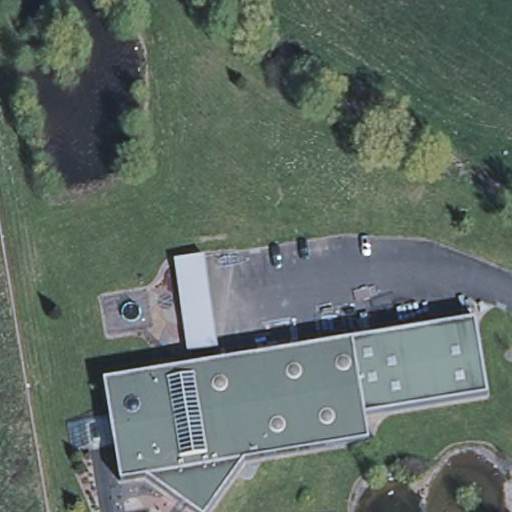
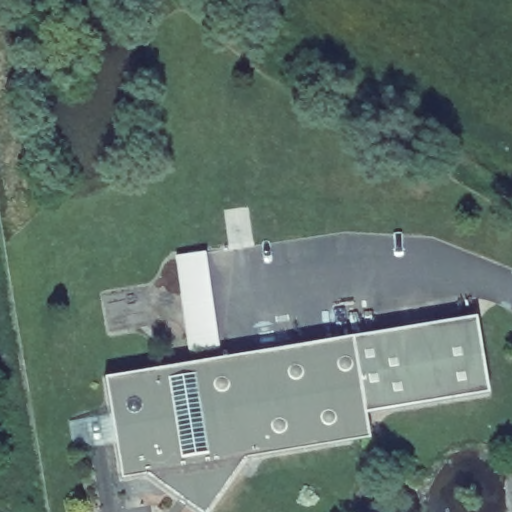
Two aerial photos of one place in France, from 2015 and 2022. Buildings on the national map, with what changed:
unchanged [(202,254),(216,347),(187,351),(173,257),(202,254)]
unchanged [(474,317),(487,394),(363,413),(350,337),(474,317)]
unchanged [(350,337),(363,413),(367,438),(243,460),(205,512),(195,512),(145,477),(119,481),(102,380),(350,337)]

